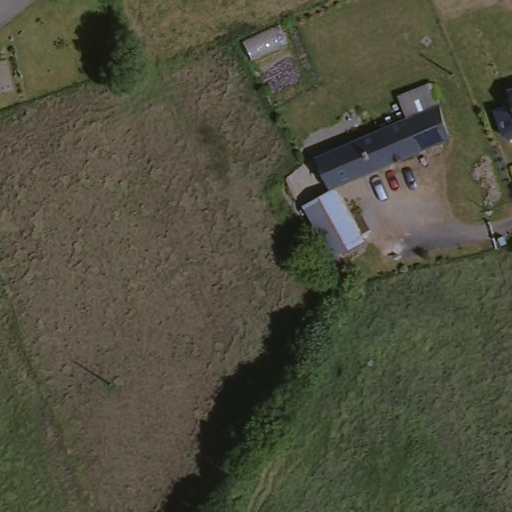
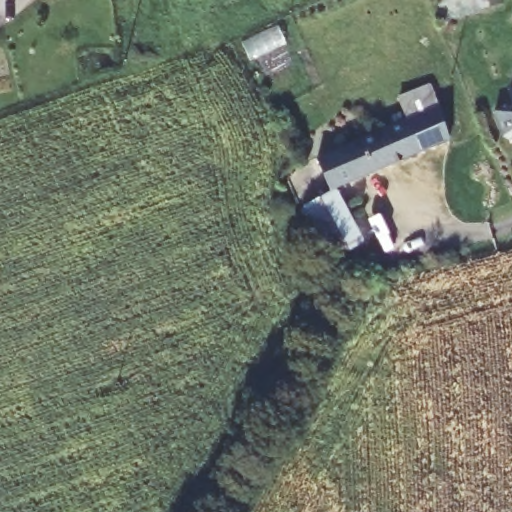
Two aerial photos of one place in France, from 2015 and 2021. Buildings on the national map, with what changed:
unchanged [(399,97),(432,86),(455,139),(324,193),(310,161),(410,120),(399,97)]
unchanged [(512,96),(512,114),(507,98),(512,96)]
unchanged [(342,189),(368,242),(338,258),(312,205),(342,189)]

